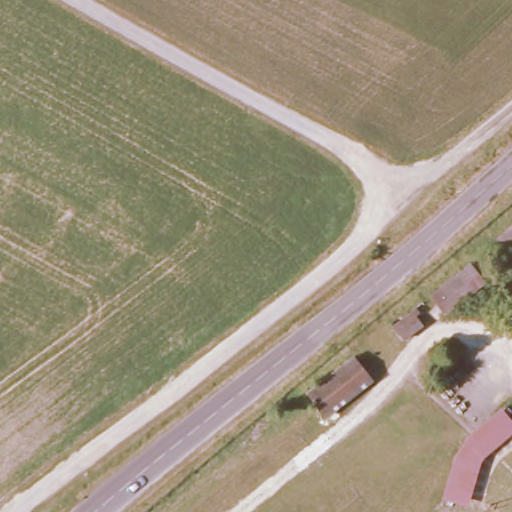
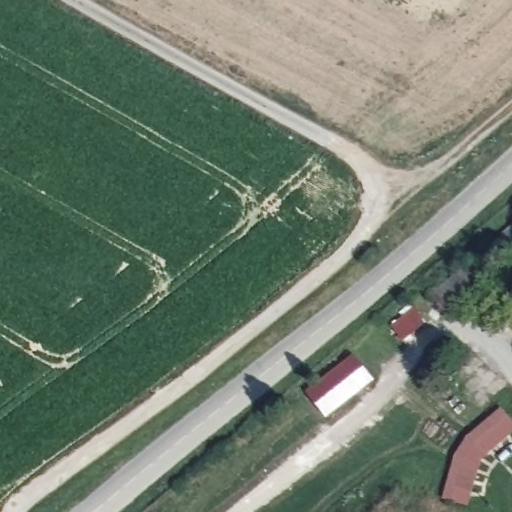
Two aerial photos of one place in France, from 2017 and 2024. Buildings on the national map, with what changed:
unchanged [(502,253),(493,243),(512,226),(512,244),(502,253)]
unchanged [(485,275),(444,307),(431,289),(471,258),(485,275)]
unchanged [(421,312),(417,317),(422,325),(402,340),(391,326),(416,306),(421,312)]
unchanged [(372,373),(326,412),(307,387),(354,350),(372,373)]
unchanged [(512,414),(512,427),(484,452),(480,458),(467,501),(442,493),(456,448),(467,430),(502,402),(512,414)]

